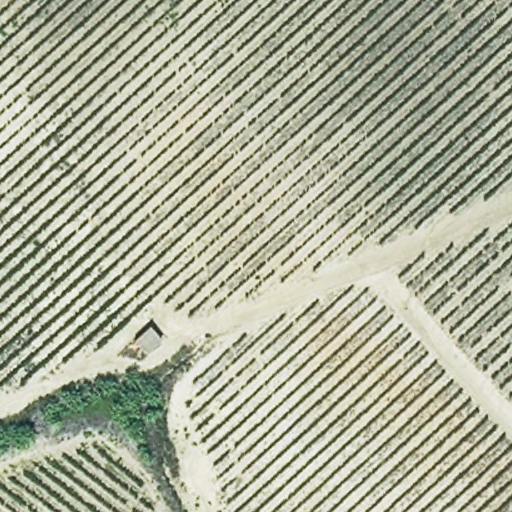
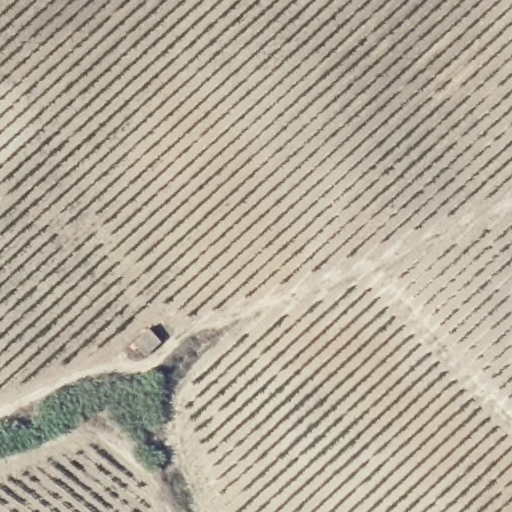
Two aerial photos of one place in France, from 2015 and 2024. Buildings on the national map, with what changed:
unchanged [(158,342),(143,358),(131,348),(145,331),(158,342)]

